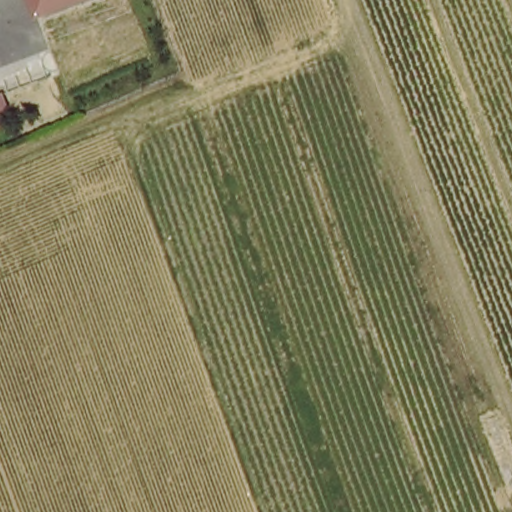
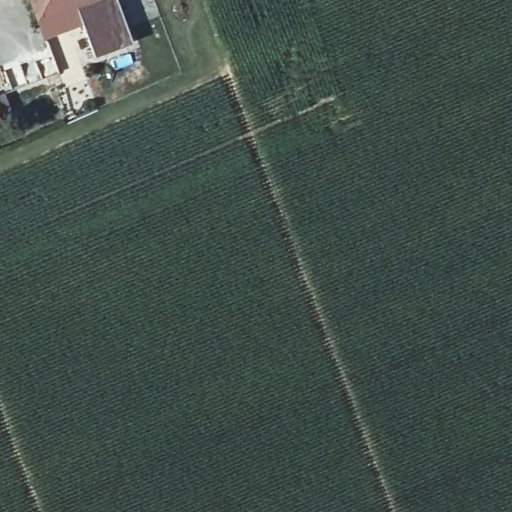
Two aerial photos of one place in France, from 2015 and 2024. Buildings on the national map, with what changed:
unchanged [(30,0),(100,0),(40,24),(30,0)]
new [(116,0),(133,43),(95,57),(81,22),(45,37),(40,24),(100,0),(116,0)]
unchanged [(4,91),(12,110),(0,114),(0,92),(4,91)]

